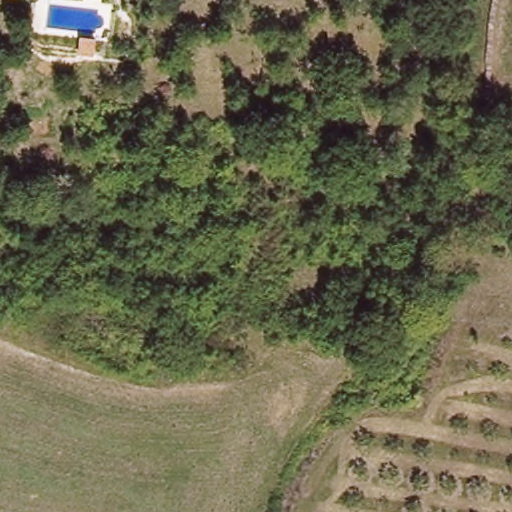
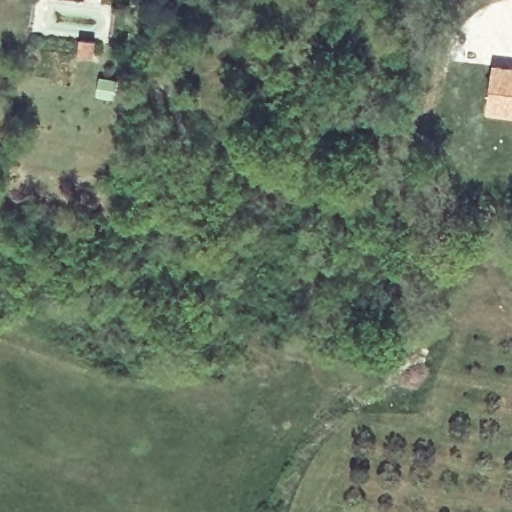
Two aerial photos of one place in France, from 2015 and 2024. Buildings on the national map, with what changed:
new [(512,66),(512,115),(488,113),(494,64),(512,66)]

